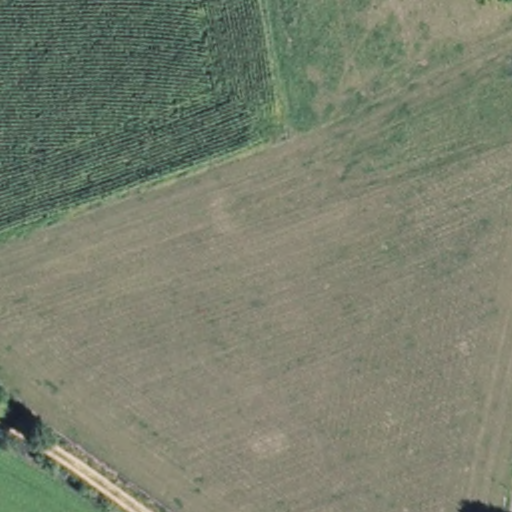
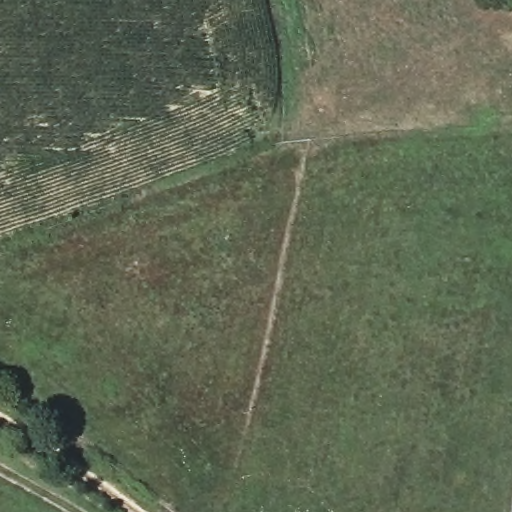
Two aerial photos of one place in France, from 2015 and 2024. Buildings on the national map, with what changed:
[]

